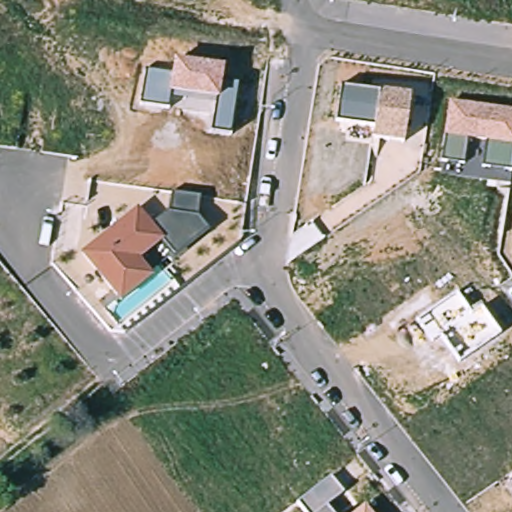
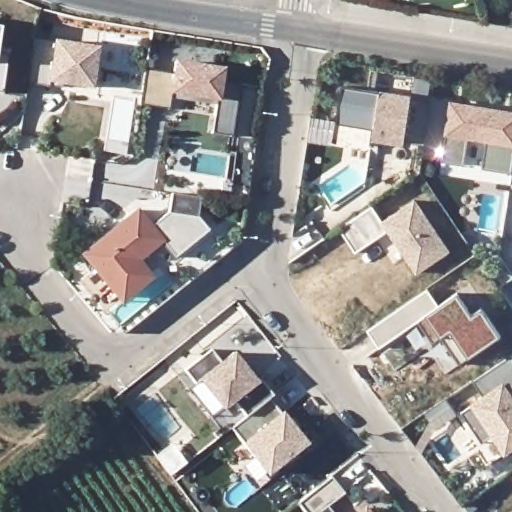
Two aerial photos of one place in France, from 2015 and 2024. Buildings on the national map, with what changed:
new [(0,33),(0,25),(2,25),(0,33)]
new [(36,36),(99,42),(95,82),(53,78),(53,84),(31,82),(36,36)]
new [(1,92),(0,92),(0,51),(9,53),(1,92)]
unchanged [(211,131),(216,104),(169,97),(167,108),(140,103),(146,70),(172,75),(174,59),(224,67),(221,81),(238,84),(231,135),(211,131)]
unchanged [(403,143),(373,139),(374,127),(336,122),(342,85),(411,94),(403,143)]
unchanged [(511,172),(482,167),(486,142),(467,139),(463,164),(442,161),(446,136),(443,136),(448,100),(512,110),(512,165),(511,172)]
unchanged [(200,197),(197,216),(209,231),(175,259),(162,243),(140,261),(153,278),(120,303),(81,254),(138,207),(152,224),(169,212),(172,193),(200,197)]
new [(339,229),(372,205),(382,221),(416,198),(451,252),(416,276),(387,233),(356,254),(339,229)]
new [(428,289),(439,306),(456,294),(471,317),(481,310),(499,336),(469,358),(461,364),(441,337),(433,342),(419,321),(380,348),(367,330),(428,289)]
new [(214,344),(224,357),(236,347),(259,376),(262,374),(275,391),(272,394),(248,412),(235,396),(225,404),(203,374),(198,378),(187,365),(214,344)]
new [(472,424),(463,409),(485,395),(475,378),(512,354),(512,386),(509,388),(512,393),(512,446),(506,451),(494,433),(483,440),(472,424)]
new [(248,412),(272,394),(307,439),(268,469),(233,423),(248,412)]
unchanged [(331,476),(344,493),(328,506),(332,512),(306,512),(298,501),(331,476)]
unchanged [(355,512),(364,505),(370,512),(355,512)]

